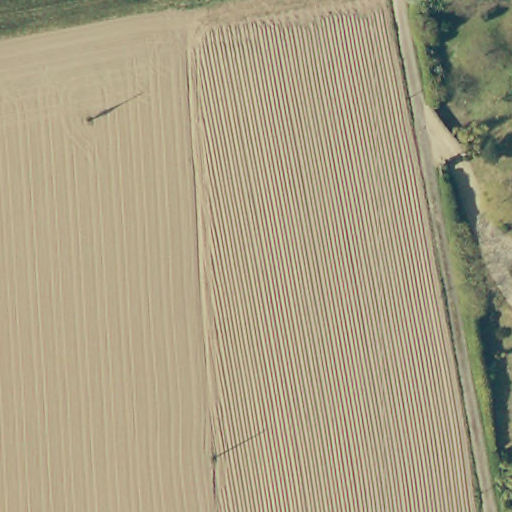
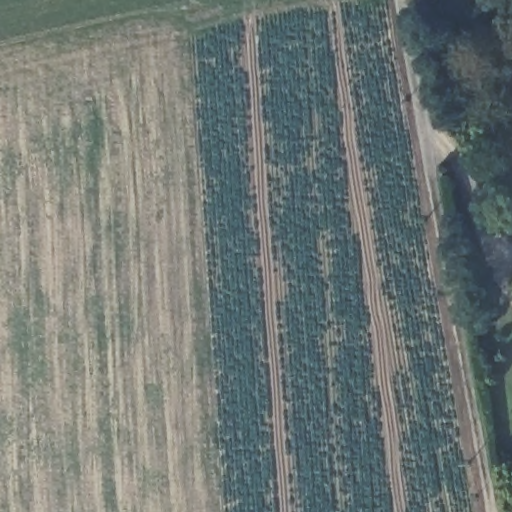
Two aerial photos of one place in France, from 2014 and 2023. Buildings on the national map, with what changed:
[]

